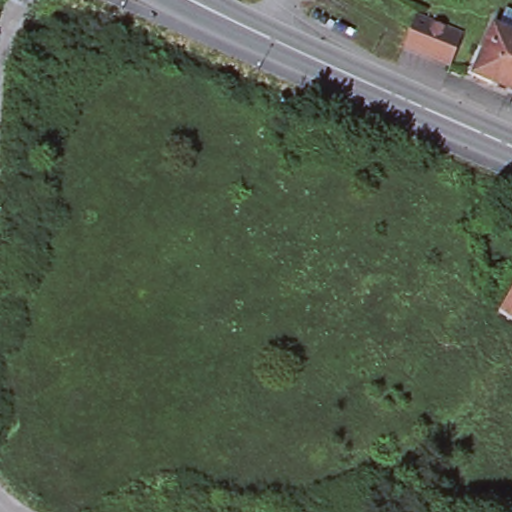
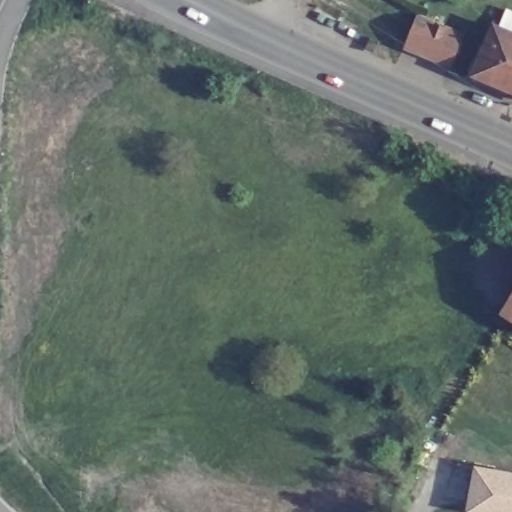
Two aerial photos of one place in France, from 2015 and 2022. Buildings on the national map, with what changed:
unchanged [(500,27),(503,18),(507,11),(512,13),(512,88),(511,90),(472,72),(494,25),(500,27)]
unchanged [(450,62),(404,40),(417,14),(462,36),(450,62)]
unchanged [(512,88),(512,90),(511,90),(512,88)]
unchanged [(512,296),(512,326),(499,318),(512,296)]
new [(512,512),(465,512),(473,466),(512,472),(512,512)]

